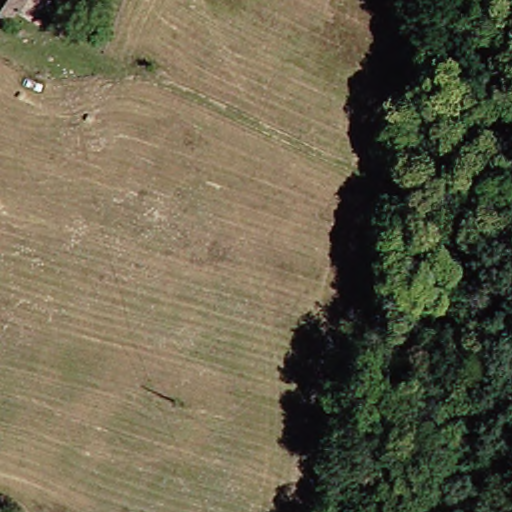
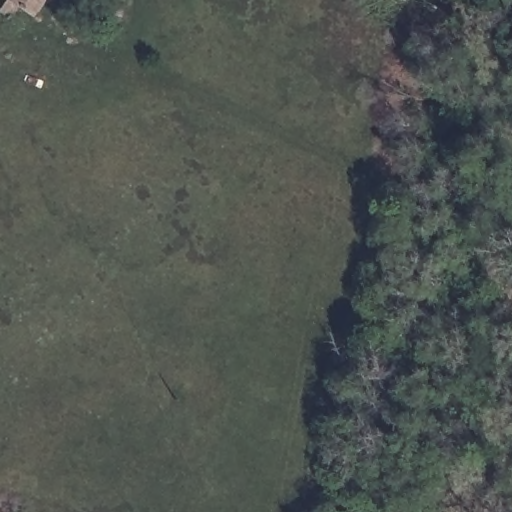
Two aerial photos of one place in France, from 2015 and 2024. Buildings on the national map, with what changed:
unchanged [(11,0),(48,0),(37,16),(11,0)]

